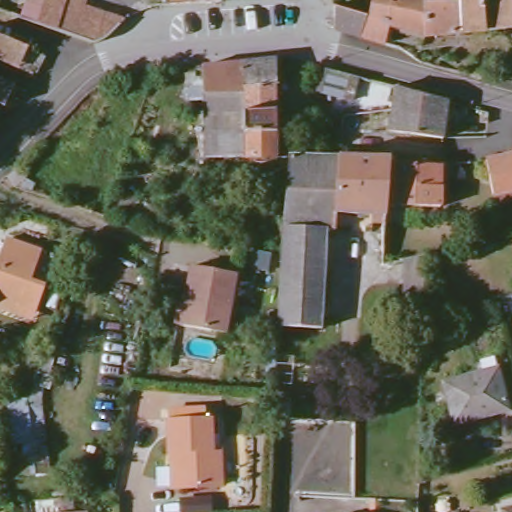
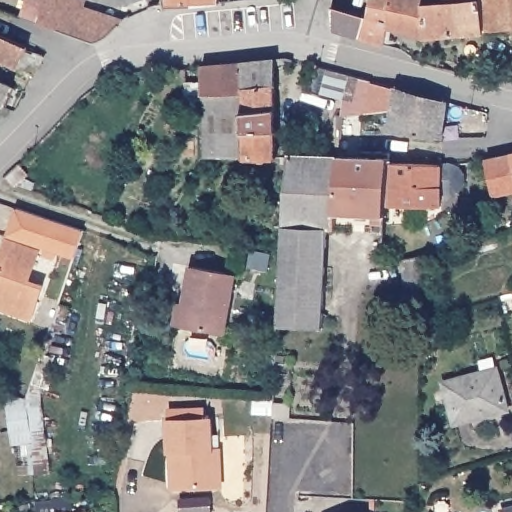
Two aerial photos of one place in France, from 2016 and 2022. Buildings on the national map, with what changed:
unchanged [(35,22),(42,0),(81,0),(80,3),(69,33),(35,22)]
unchanged [(168,1),(168,0),(176,0),(168,1)]
unchanged [(383,41),(330,27),(330,5),(367,14),(369,0),(389,0),(386,21),(383,41)]
unchanged [(386,21),(389,0),(425,0),(422,30),(386,21)]
unchanged [(425,0),(512,0),(512,24),(422,30),(425,0)]
unchanged [(110,41),(95,43),(69,33),(80,3),(132,20),(110,41)]
unchanged [(0,57),(0,35),(29,49),(20,67),(0,57)]
unchanged [(247,111),(245,91),(202,95),(202,66),(281,57),(280,109),(247,111)]
unchanged [(316,64),(360,77),(353,99),(310,86),(316,64)]
unchanged [(0,105),(0,82),(12,87),(3,106),(0,105)]
unchanged [(391,112),(394,87),(448,101),(445,119),(391,112)]
unchanged [(202,119),(202,95),(245,91),(247,111),(280,109),(280,117),(202,119)]
unchanged [(442,140),(390,136),(391,112),(445,119),(443,132),(442,140)]
unchanged [(280,157),(203,157),(202,119),(280,117),(280,157)]
unchanged [(40,132),(56,145),(30,177),(34,182),(25,191),(1,179),(40,132)]
unchanged [(335,231),(324,231),(280,230),(290,155),(340,157),(336,213),(335,231)]
unchanged [(390,214),(336,213),(340,157),(391,158),(391,164),(390,207),(390,214)]
unchanged [(497,190),(490,164),(512,158),(512,186),(497,190)]
unchanged [(458,173),(458,184),(450,195),(440,195),(440,207),(390,207),(391,164),(442,164),(451,164),(458,173)]
new [(8,239),(17,209),(83,230),(75,258),(40,251),(8,239)]
unchanged [(275,325),(277,246),(280,231),(280,230),(324,231),(321,326),(275,325)]
unchanged [(40,251),(30,280),(45,285),(35,310),(32,319),(12,312),(0,307),(0,262),(8,239),(40,251)]
unchanged [(407,287),(407,258),(426,253),(424,286),(407,287)]
unchanged [(183,323),(193,267),(232,275),(222,331),(183,323)]
unchanged [(456,422),(445,377),(497,365),(510,410),(456,422)]
unchanged [(17,443),(14,392),(31,396),(37,443),(17,443)]
unchanged [(215,488),(173,487),(172,452),(165,452),(165,420),(171,420),(171,410),(188,410),(202,410),(202,420),(207,420),(207,452),(216,452),(215,488)]
unchanged [(214,495),(213,511),(183,510),(184,495),(214,495)]
unchanged [(512,505),(512,512),(505,512),(504,507),(512,505)]
unchanged [(246,512),(232,512),(247,511),(246,512)]

